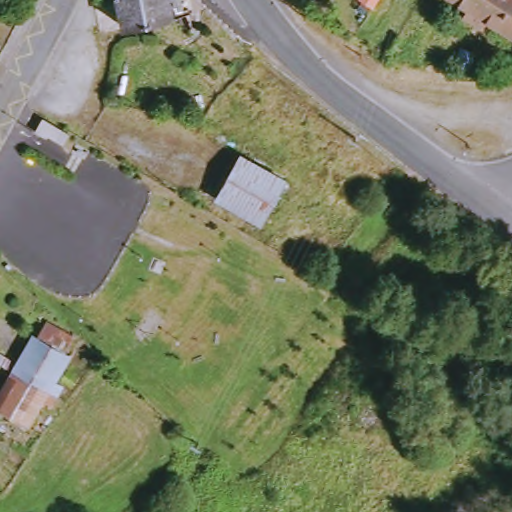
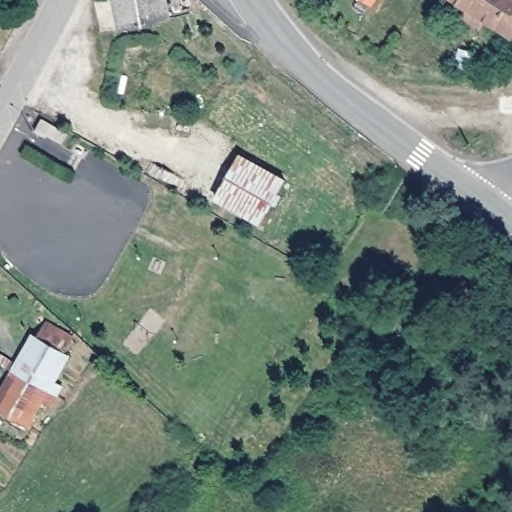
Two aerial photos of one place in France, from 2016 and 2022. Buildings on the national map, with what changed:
unchanged [(177,14),(177,22),(127,29),(121,0),(183,0),(184,12),(177,14)]
unchanged [(360,6),(363,0),(380,0),(372,13),(360,6)]
unchanged [(470,14),(474,6),(465,0),(495,0),(482,20),(470,14)]
unchanged [(497,18),(490,25),(482,20),(495,0),(512,0),(512,26),(497,18)]
unchanged [(265,225),(219,198),(245,151),(289,181),(265,225)]
unchanged [(19,374),(37,338),(62,351),(50,377),(56,382),(51,393),(19,374)]
unchanged [(46,402),(39,400),(25,422),(0,410),(19,374),(51,393),(46,402)]

